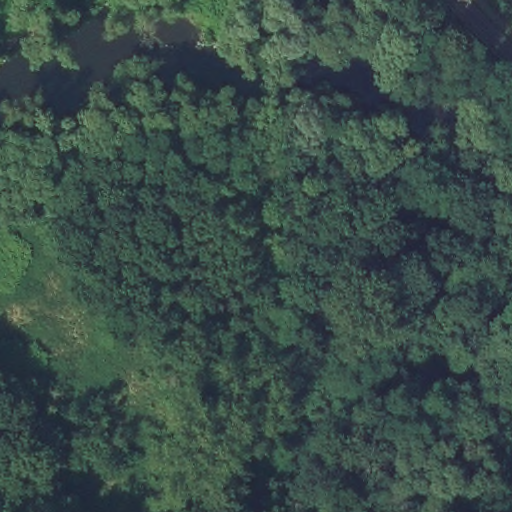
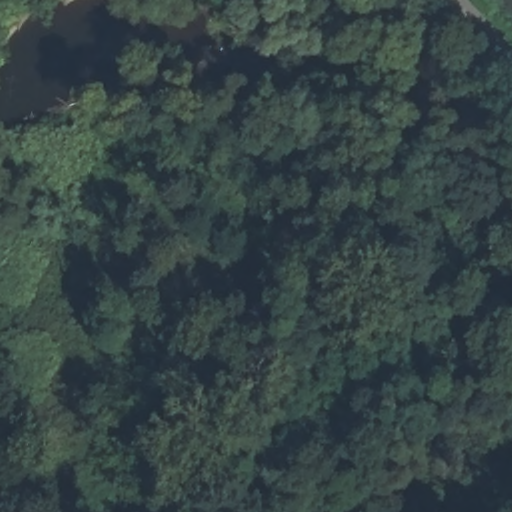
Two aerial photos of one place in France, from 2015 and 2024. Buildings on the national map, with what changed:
[]

